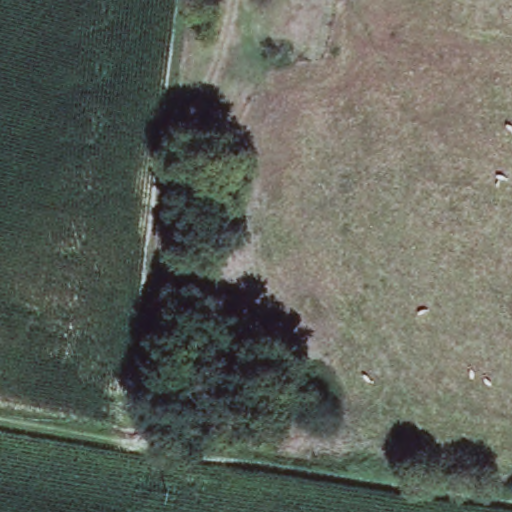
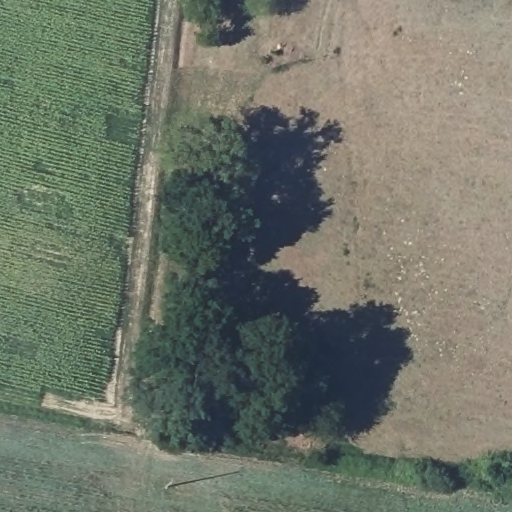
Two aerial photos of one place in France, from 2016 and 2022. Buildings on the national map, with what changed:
[]

